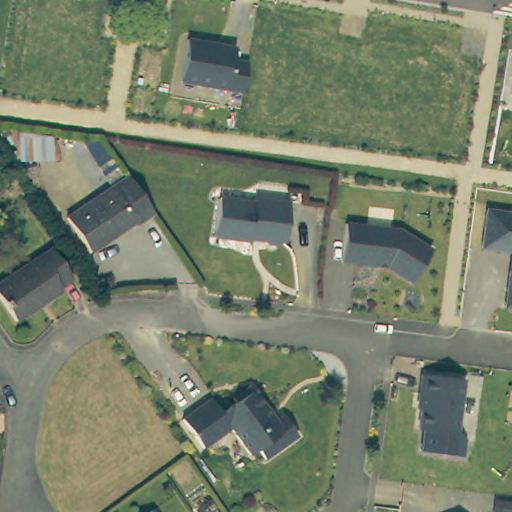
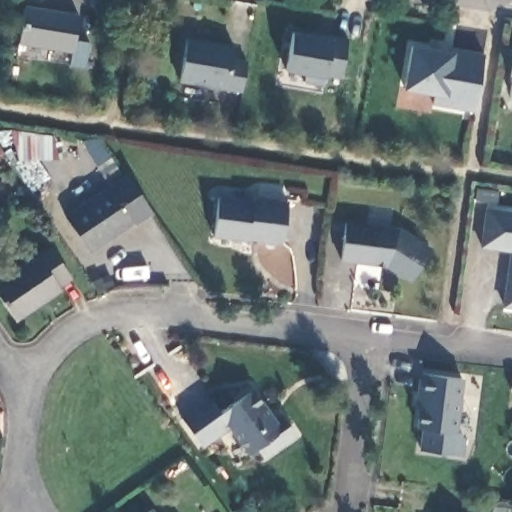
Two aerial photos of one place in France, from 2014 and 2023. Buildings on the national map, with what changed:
new [(70,66),(73,51),(19,44),(25,7),(81,15),(77,40),(91,42),(86,67),(70,66)]
new [(333,37),(347,39),(341,79),(326,76),(324,86),(307,83),(308,75),(289,71),(294,31),(333,37)]
unchanged [(236,45),(234,60),(248,61),(243,91),(182,82),(188,37),(236,45)]
new [(476,112),(436,105),(438,94),(403,88),(411,42),(458,50),(486,52),(476,112)]
unchanged [(156,215),(134,229),(132,226),(88,252),(63,215),(129,174),(156,215)]
unchanged [(245,193),(247,187),(283,195),(277,235),(274,234),(274,238),(259,235),(257,232),(245,230),(244,235),(206,228),(214,187),(245,193)]
unchanged [(401,215),(430,233),(411,266),(388,253),(339,245),(347,206),(401,215)]
unchanged [(512,211),(512,309),(504,308),(510,252),(481,250),(487,207),(512,211)]
unchanged [(0,279),(54,244),(76,275),(64,283),(68,289),(21,320),(0,290),(0,279)]
unchanged [(461,370),(452,425),(415,418),(419,388),(414,387),(420,363),(461,370)]
unchanged [(283,410),(291,405),(307,425),(273,449),(267,440),(259,445),(239,417),(212,437),(191,408),(220,388),(230,402),(244,393),(240,387),(257,376),(283,410)]
unchanged [(452,425),(450,432),(464,435),(461,458),(418,451),(424,420),(452,425)]
unchanged [(145,512),(154,506),(158,512),(145,512)]

